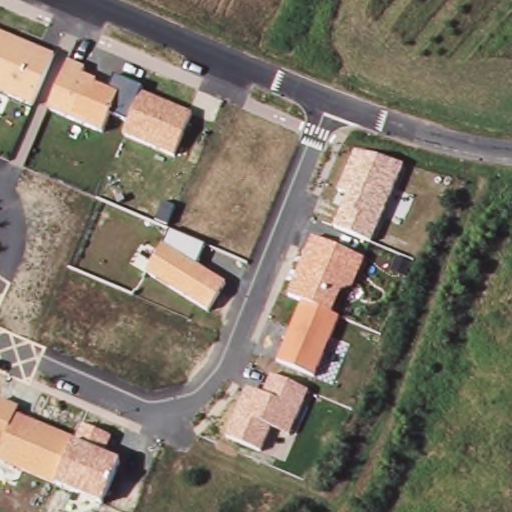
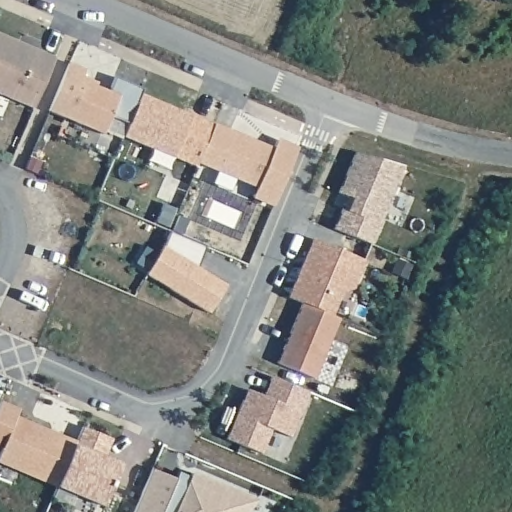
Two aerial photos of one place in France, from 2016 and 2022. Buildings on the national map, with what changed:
unchanged [(55,56),(32,108),(0,94),(0,33),(55,56)]
unchanged [(86,69),(83,76),(98,82),(97,86),(110,90),(115,78),(143,89),(140,95),(192,115),(175,158),(122,137),(127,124),(109,116),(101,135),(47,114),(68,63),(86,69)]
new [(219,126),(278,151),(282,142),(302,150),(279,207),(258,198),(262,188),(203,163),(219,126)]
unchanged [(402,164),(370,243),(332,228),(345,195),(336,191),(353,153),(402,164)]
unchanged [(207,246),(197,266),(227,283),(209,313),(146,274),(171,231),(207,246)]
unchanged [(366,260),(352,291),(343,293),(333,316),(299,304),(285,299),(311,237),(366,260)]
unchanged [(337,317),(313,378),(276,363),(299,304),(337,317)]
unchanged [(310,392),(291,439),(272,430),(260,454),(225,439),(247,389),(262,395),(270,376),(310,392)]
unchanged [(16,407),(14,415),(74,440),(55,486),(0,463),(0,451),(0,450),(0,449),(0,401),(16,407)]
unchanged [(113,438),(105,454),(121,462),(102,508),(55,486),(74,440),(80,425),(113,438)]
new [(184,474),(195,479),(197,474),(262,502),(254,512),(140,512),(157,470),(181,481),(184,474)]

